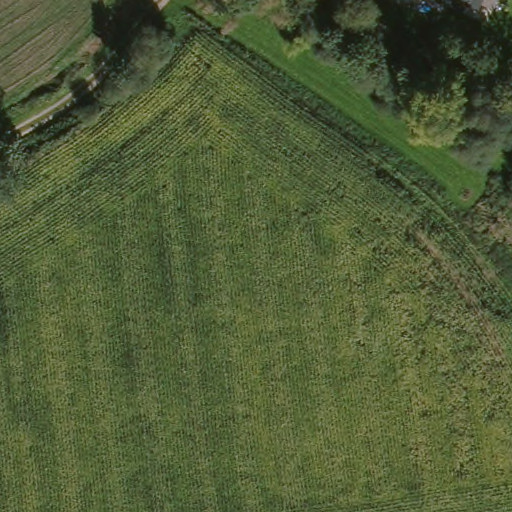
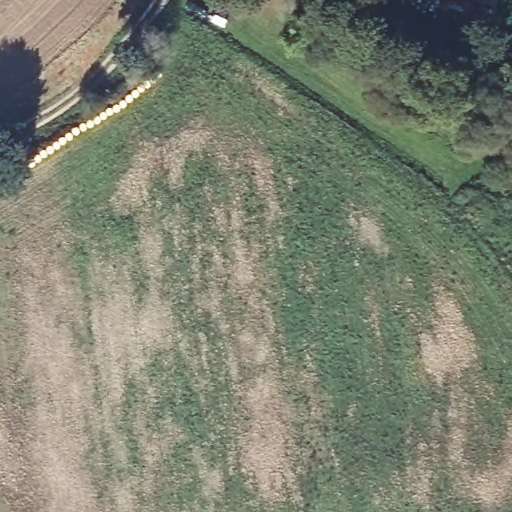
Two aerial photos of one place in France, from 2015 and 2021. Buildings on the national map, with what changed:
unchanged [(463,0),(479,0),(476,7),(463,0)]

